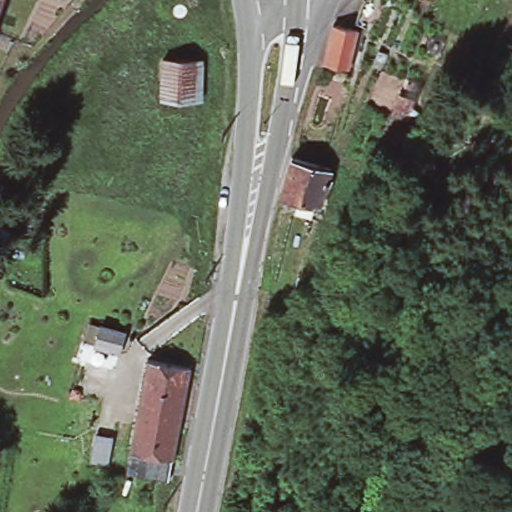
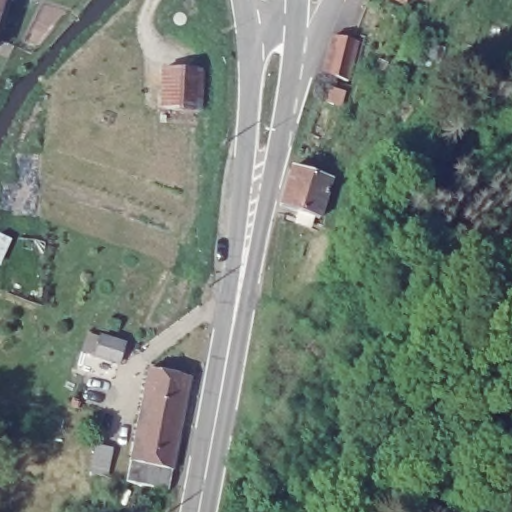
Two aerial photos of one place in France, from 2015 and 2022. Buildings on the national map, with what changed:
unchanged [(3,4),(0,3),(0,0),(4,0),(3,4)]
unchanged [(407,2),(401,0),(408,0),(407,2)]
unchanged [(3,4),(0,13),(0,3),(3,4)]
unchanged [(334,34),(354,39),(359,40),(350,79),(325,73),(334,34)]
unchanged [(204,70),(201,110),(195,110),(162,110),(164,69),(194,70),(204,70)]
unchanged [(401,100),(417,105),(409,125),(394,120),(401,100)]
unchanged [(292,166),(332,177),(320,216),(281,205),(292,166)]
unchanged [(97,340),(122,347),(115,372),(90,366),(97,340)]
unchanged [(139,422),(149,370),(191,378),(181,430),(180,436),(174,470),(170,490),(163,488),(127,482),(132,461),(137,428),(139,422)]
unchanged [(97,445),(115,448),(109,475),(92,471),(97,445)]

